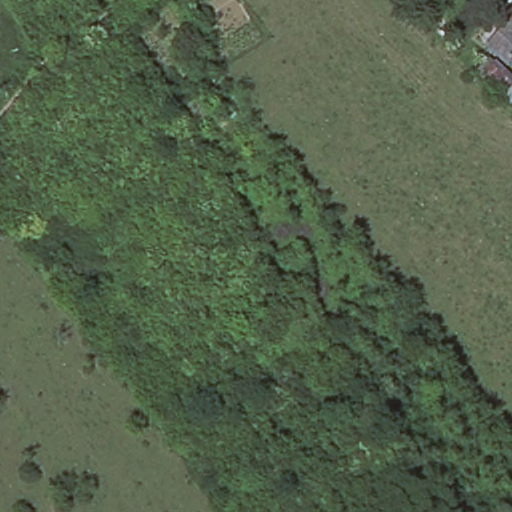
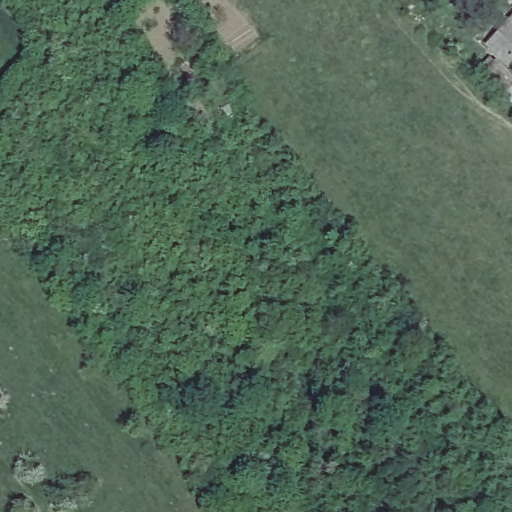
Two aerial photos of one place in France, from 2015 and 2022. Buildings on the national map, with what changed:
unchanged [(494,54),(487,48),(512,21),(512,65),(509,69),(512,71),(512,105),(478,72),(494,54)]

